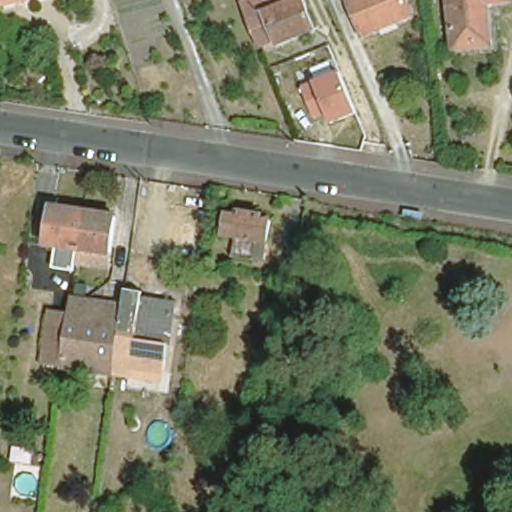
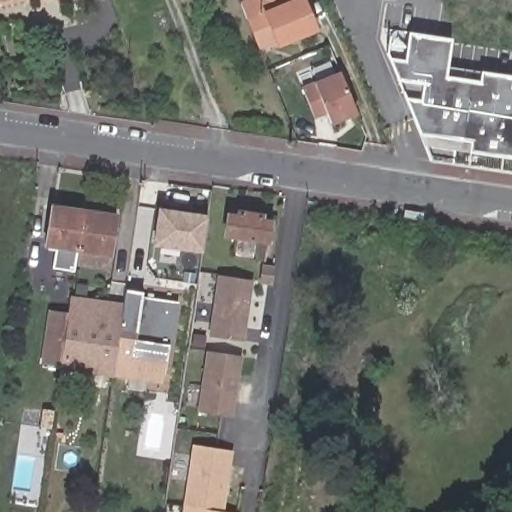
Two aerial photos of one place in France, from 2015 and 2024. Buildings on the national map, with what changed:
unchanged [(243,12),(260,4),(259,0),(301,0),(304,6),(317,38),(279,52),(277,47),(260,54),(249,28),(243,12)]
demolished [(377,20),(379,26),(359,34),(347,0),(407,0),(411,12),(389,22),(386,17),(377,20)]
demolished [(448,50),(442,0),(502,0),(502,1),(478,4),(483,46),(448,50)]
new [(383,57),(399,58),(403,33),(443,38),(440,76),(475,80),(475,69),(508,72),(508,84),(512,85),(512,159),(420,146),(383,57)]
unchanged [(332,127),(328,117),(315,120),(302,87),(338,71),(360,117),(332,127)]
new [(202,253),(152,246),(158,207),(207,214),(202,253)]
unchanged [(76,251),(42,246),(48,209),(81,214),(76,251)]
unchanged [(271,242),(261,241),(258,261),(236,258),(239,237),(228,236),(231,215),(242,217),(243,212),(265,215),(264,220),(273,222),(271,242)]
unchanged [(112,218),(107,256),(76,251),(81,214),(112,218)]
new [(218,275),(253,280),(243,341),(208,336),(218,275)]
demolished [(277,280),(292,282),(286,324),(271,322),(277,280)]
unchanged [(178,302),(172,345),(139,340),(138,351),(121,348),(124,326),(127,307),(129,296),(178,302)]
unchanged [(72,313),(74,299),(127,307),(124,326),(71,317),(72,313)]
new [(46,310),(72,313),(71,317),(64,366),(38,362),(46,310)]
unchanged [(64,366),(71,317),(124,326),(121,348),(117,376),(64,368),(64,366)]
new [(162,382),(117,376),(121,348),(138,351),(139,340),(168,345),(162,382)]
new [(197,411),(206,351),(241,356),(232,416),(197,411)]
new [(223,511),(234,512),(182,512),(193,445),(232,450),(223,511)]

